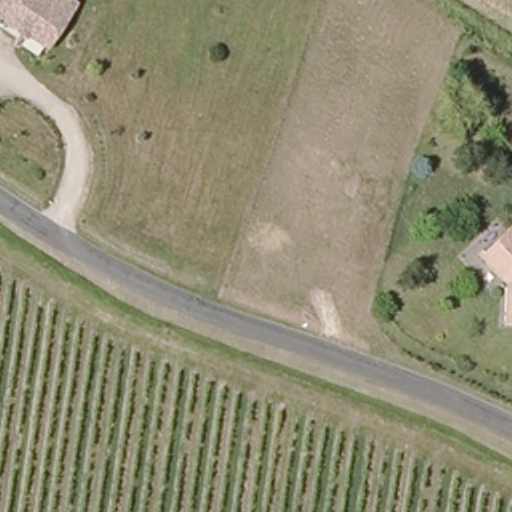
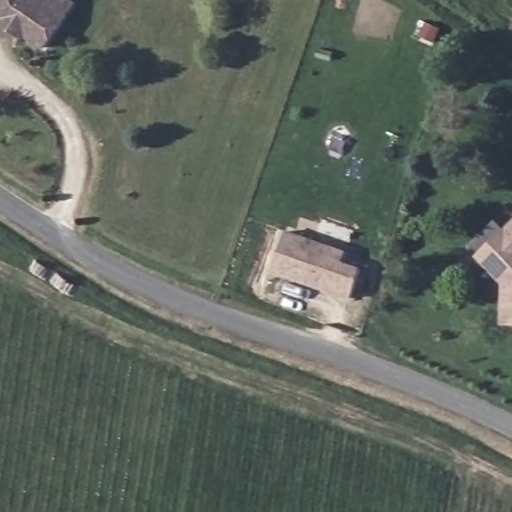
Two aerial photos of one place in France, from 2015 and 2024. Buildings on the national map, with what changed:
unchanged [(0,18),(0,0),(74,0),(75,1),(42,47),(0,18)]
unchanged [(510,284),(485,258),(512,229),(512,323),(511,323),(510,284)]
new [(352,299),(273,273),(287,230),(348,250),(345,262),(363,268),(352,299)]

